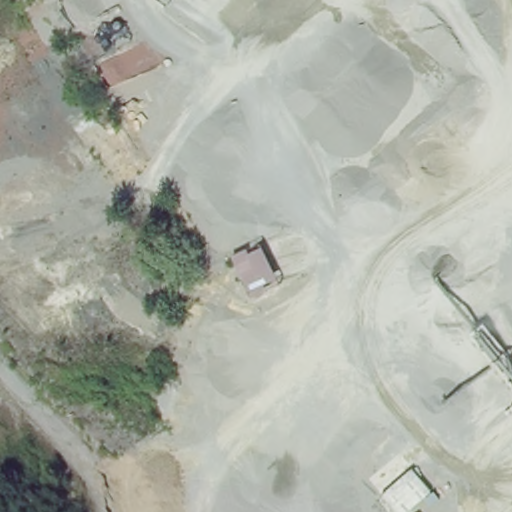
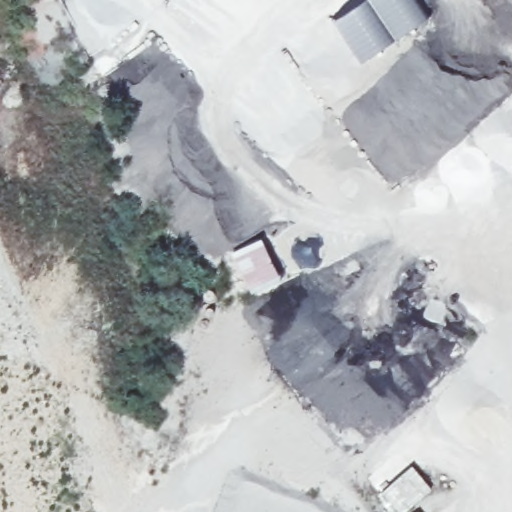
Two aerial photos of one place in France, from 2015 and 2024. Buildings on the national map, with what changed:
new [(363,0),(366,0),(394,42),(360,64),(332,21),(363,0)]
new [(430,18),(394,42),(366,0),(418,0),(430,18)]
new [(278,281),(253,294),(231,253),(260,241),(278,281)]

